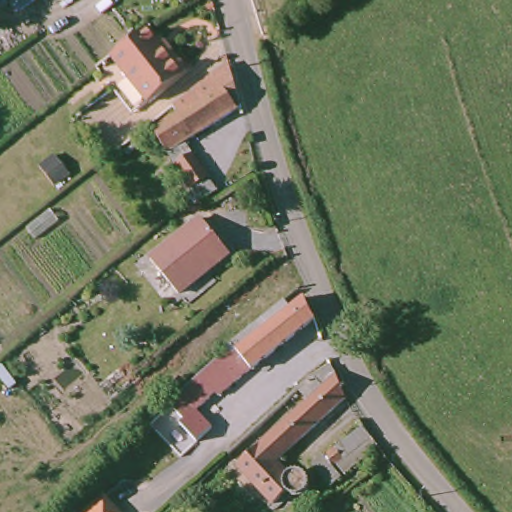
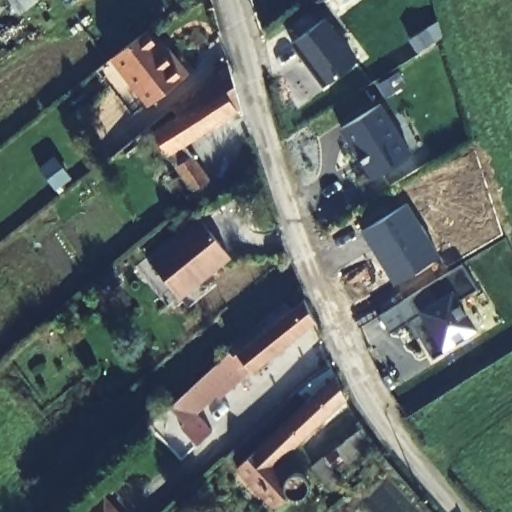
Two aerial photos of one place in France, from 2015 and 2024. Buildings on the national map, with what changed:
unchanged [(181,12),(172,0),(190,0),(193,4),(181,12)]
new [(322,84),(291,43),(325,16),(359,59),(322,84)]
unchanged [(147,30),(171,61),(176,58),(187,74),(171,87),(149,104),(112,58),(136,39),(147,30)]
unchanged [(154,131),(180,115),(175,107),(228,64),(241,109),(233,112),(183,144),(210,185),(195,198),(154,131)]
new [(371,177),(342,128),(382,102),(414,152),(371,177)]
new [(440,252),(395,283),(362,232),(410,202),(440,252)]
unchanged [(152,262),(198,221),(227,252),(182,294),(152,262)]
new [(460,269),(474,295),(453,305),(470,335),(428,362),(406,324),(389,335),(379,317),(460,269)]
unchanged [(221,360),(230,353),(226,349),(284,297),(290,305),(304,292),(313,316),(240,382),(221,360)]
unchanged [(240,382),(221,398),(218,395),(198,412),(213,430),(199,443),(182,425),(186,422),(171,405),(221,360),(240,382)]
unchanged [(260,442),(296,407),(292,401),(332,363),(345,393),(275,460),(260,442)]
unchanged [(363,440),(323,473),(317,466),(358,432),(363,440)]
unchanged [(288,492),(285,489),(274,500),(239,462),(260,442),(275,460),(279,464),(275,468),(296,471),(302,478),(301,485),(293,491),(288,492)]
unchanged [(106,507),(110,512),(100,512),(106,507)]

